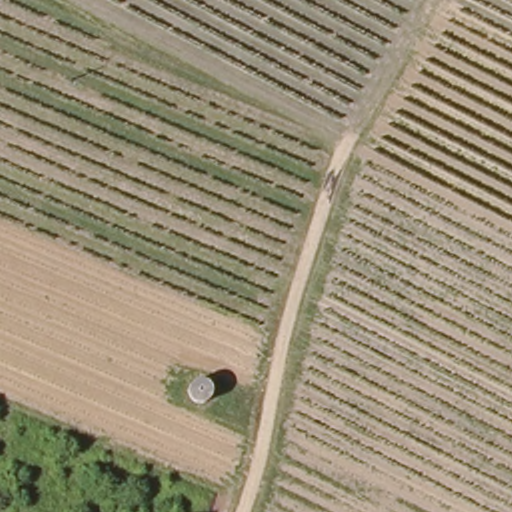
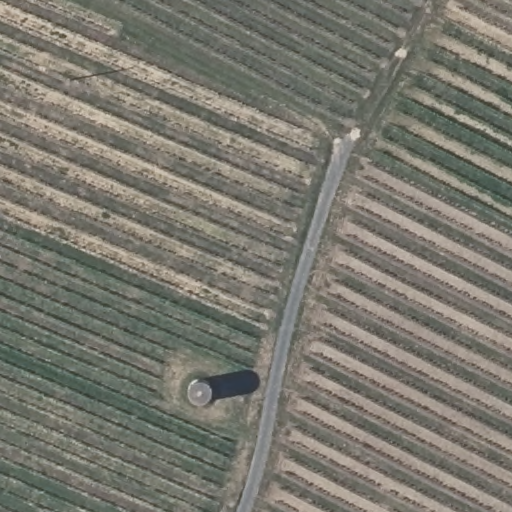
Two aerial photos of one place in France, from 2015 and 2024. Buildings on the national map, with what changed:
unchanged [(195,406),(186,400),(182,390),(185,379),(194,372),(205,372),(214,378),(218,388),(215,398),(206,405),(195,406)]

